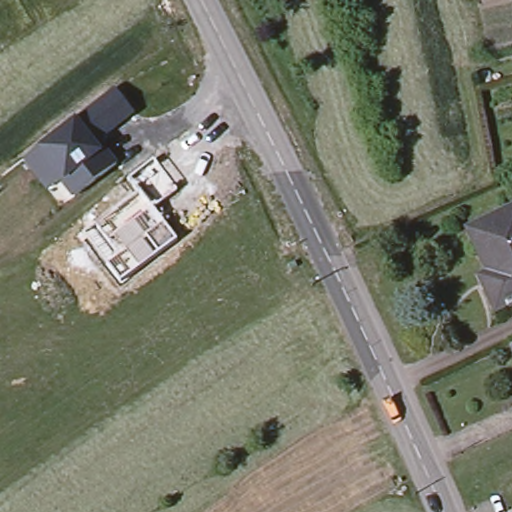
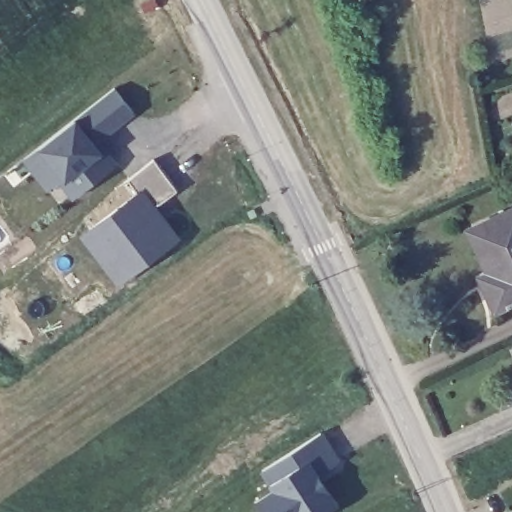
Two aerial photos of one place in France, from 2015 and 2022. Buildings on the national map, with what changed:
unchanged [(59,182),(46,191),(25,160),(40,147),(77,119),(115,89),(134,113),(102,139),(119,164),(72,198),(59,182)]
unchanged [(139,192),(129,178),(155,160),(179,190),(154,209),(177,239),(122,282),(83,234),(139,192)]
unchanged [(490,310),(480,288),(487,284),(482,273),(482,272),(462,230),(512,208),(512,300),(490,310)]
new [(255,499),(272,490),(268,483),(260,467),(325,433),(340,460),(318,473),(337,506),(328,512),(263,512),(255,499)]

